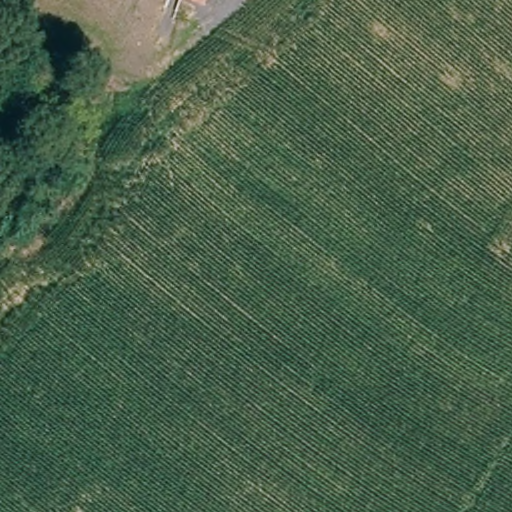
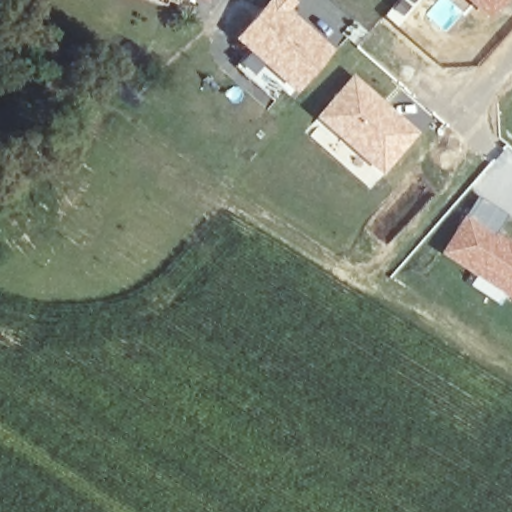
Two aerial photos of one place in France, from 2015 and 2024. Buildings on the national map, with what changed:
unchanged [(193,0),(208,0),(206,4),(193,0)]
new [(295,0),(300,4),(293,12),(333,50),(292,95),(261,70),(252,81),(235,65),(246,52),(232,39),(266,0),(295,0)]
new [(418,0),(395,27),(383,16),(398,0),(418,0)]
new [(464,0),(506,0),(486,20),(464,0)]
new [(351,74),(419,134),(387,170),(376,179),(312,119),(351,74)]
new [(458,222),(479,197),(503,214),(500,219),(484,209),(478,217),(495,230),(512,241),(512,305),(504,300),(499,307),(466,286),(471,278),(436,254),(458,222)]

